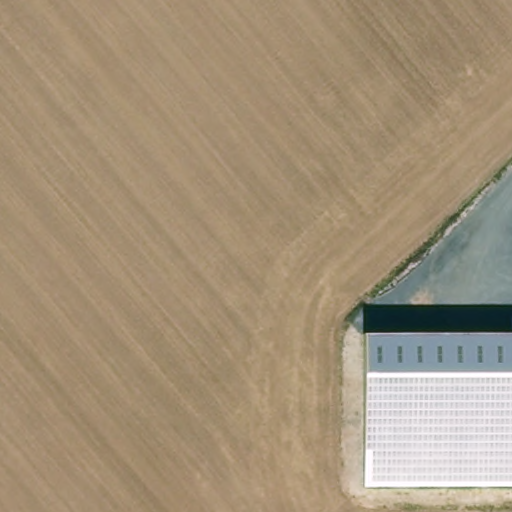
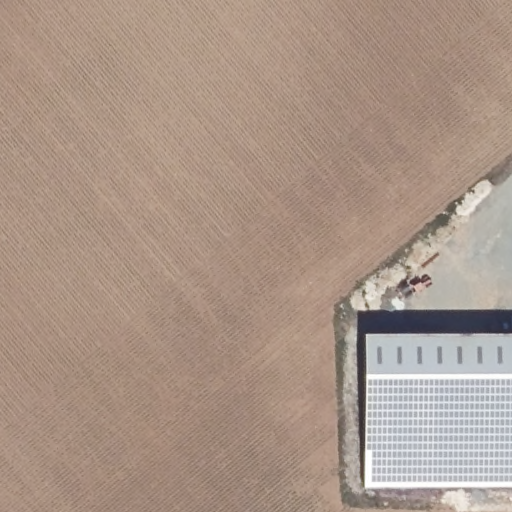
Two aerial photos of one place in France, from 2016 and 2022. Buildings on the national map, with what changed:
unchanged [(364,335),(512,334),(512,487),(363,488),(364,335)]

